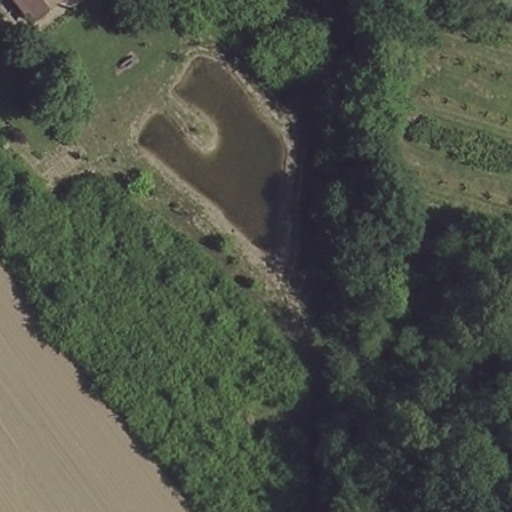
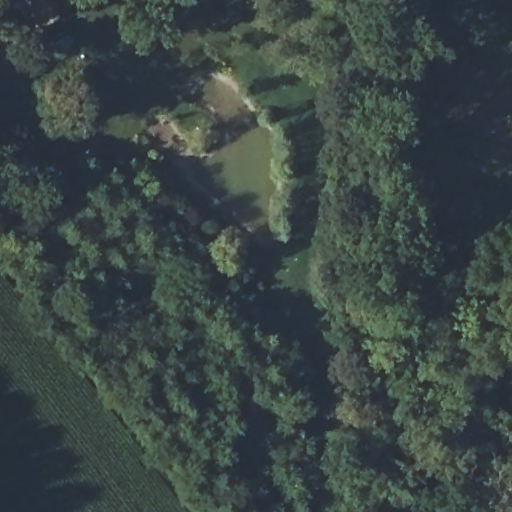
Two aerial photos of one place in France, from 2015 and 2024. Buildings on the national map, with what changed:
unchanged [(19,0),(62,0),(36,21),(19,0)]

